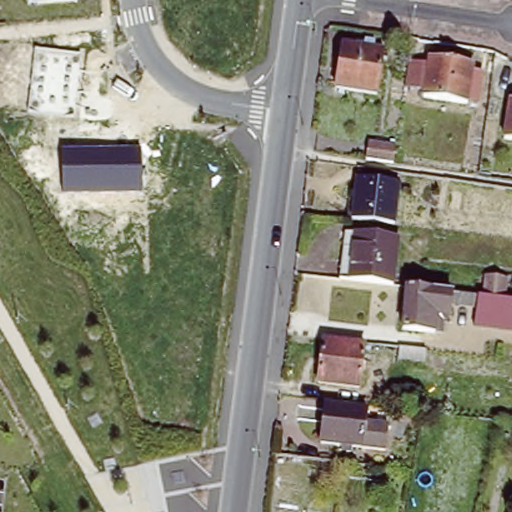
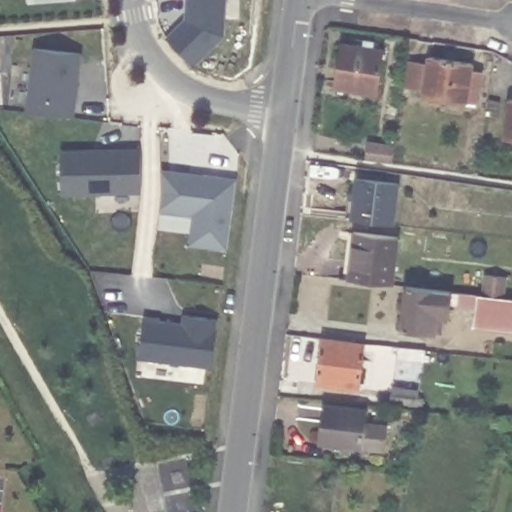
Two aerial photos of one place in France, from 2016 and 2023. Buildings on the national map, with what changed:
unchanged [(78,0),(78,1),(30,5),(29,0),(78,0)]
new [(195,66),(167,37),(187,20),(187,0),(227,0),(226,36),(195,66)]
unchanged [(351,44),(391,51),(384,95),(344,89),(351,44)]
unchanged [(27,111),(33,48),(83,53),(77,117),(27,111)]
unchanged [(428,58),(472,65),(465,105),(422,98),(428,58)]
unchanged [(510,99),(512,99),(512,141),(503,139),(510,99)]
unchanged [(367,145),(393,149),(391,166),(365,162),(367,145)]
unchanged [(60,151),(141,147),(142,191),(62,194),(60,151)]
new [(230,251),(189,245),(193,212),(162,209),(161,168),(239,178),(230,251)]
unchanged [(358,219),(363,179),(404,184),(399,224),(358,219)]
unchanged [(355,234),(398,239),(392,285),(350,280),(355,234)]
unchanged [(458,305),(460,293),(477,295),(477,292),(485,293),(487,276),(506,278),(504,295),(512,296),(512,335),(473,331),(476,307),(458,305)]
unchanged [(449,314),(427,312),(425,330),(402,328),(407,286),(417,288),(452,292),(449,314)]
new [(213,369),(138,358),(145,315),(182,321),(183,315),(220,321),(213,369)]
unchanged [(367,377),(327,373),(331,336),(370,341),(367,377)]
unchanged [(429,360),(400,357),(402,347),(430,350),(429,360)]
unchanged [(420,391),(420,398),(425,399),(425,406),(395,402),(396,388),(420,391)]
unchanged [(375,416),(374,429),(395,432),(392,456),(330,447),(335,411),(375,416)]

